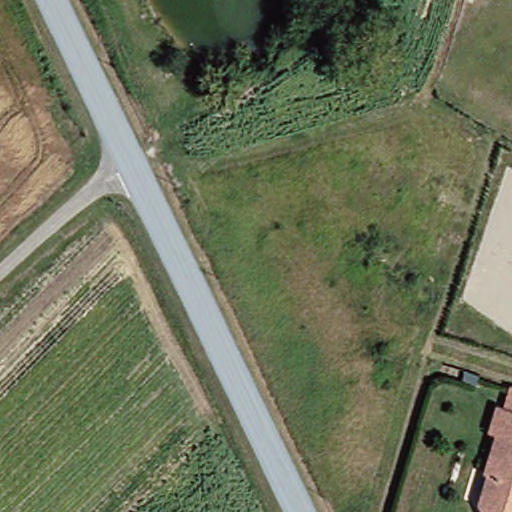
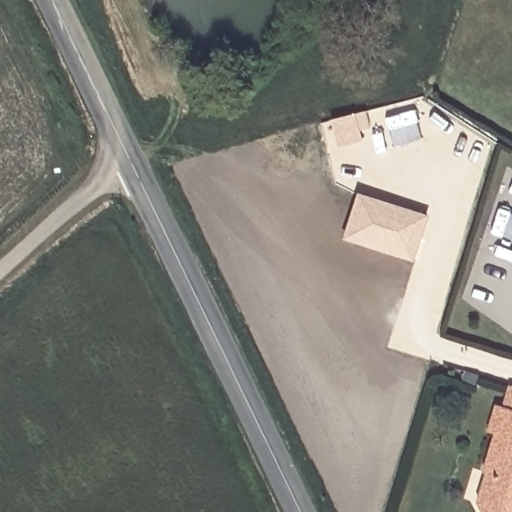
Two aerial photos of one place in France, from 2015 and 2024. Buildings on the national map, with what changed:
new [(371,129),(361,131),(362,140),(339,146),(332,120),(367,111),(371,129)]
new [(416,262),(344,238),(358,192),(430,215),(416,262)]
unchanged [(472,500),(483,472),(482,471),(494,433),(487,429),(495,405),(505,408),(511,383),(512,383),(512,512),(479,512),(472,500)]

